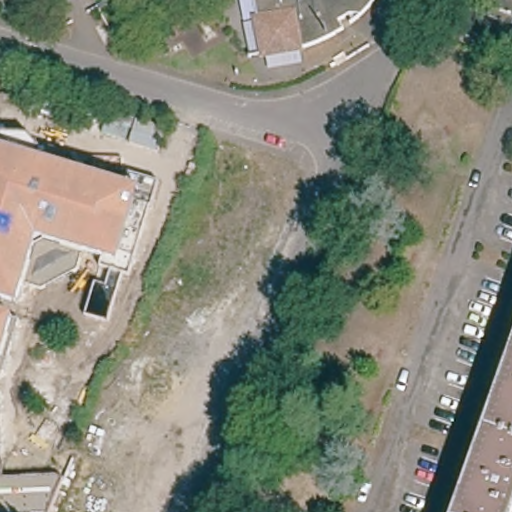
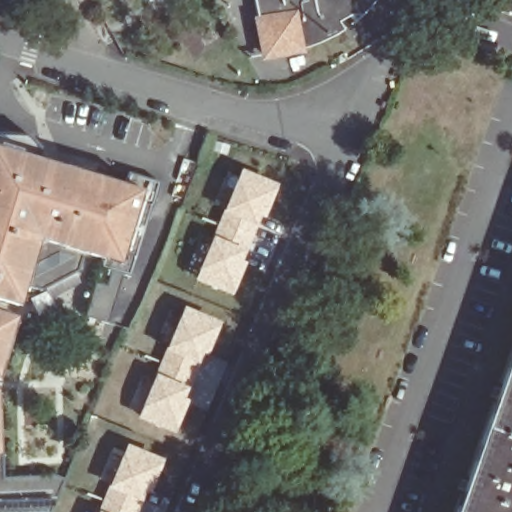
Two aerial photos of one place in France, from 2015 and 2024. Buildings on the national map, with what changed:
unchanged [(379,0),(370,9),(368,9),(348,10),(334,19),(341,30),(329,37),(311,44),(293,48),(268,51),(256,0),(379,0)]
unchanged [(115,193),(129,198),(144,203),(138,225),(129,256),(108,249),(104,259),(78,251),(72,270),(35,287),(16,282),(10,301),(0,298),(0,132),(13,129),(20,130),(24,132),(29,139),(32,143),(34,158),(117,185),(115,193)]
new [(274,186),(264,213),(258,210),(237,263),(242,265),(231,292),(199,278),(241,174),(274,186)]
new [(219,322),(206,356),(202,354),(197,365),(165,350),(182,307),(219,322)]
unchanged [(12,319),(0,361),(0,313),(13,317),(12,319)]
unchanged [(458,512),(467,485),(512,361),(512,512),(458,512)]
new [(188,387),(184,399),(189,401),(174,434),(137,419),(156,376),(188,387)]
new [(141,512),(99,512),(127,444),(162,458),(141,512)]

